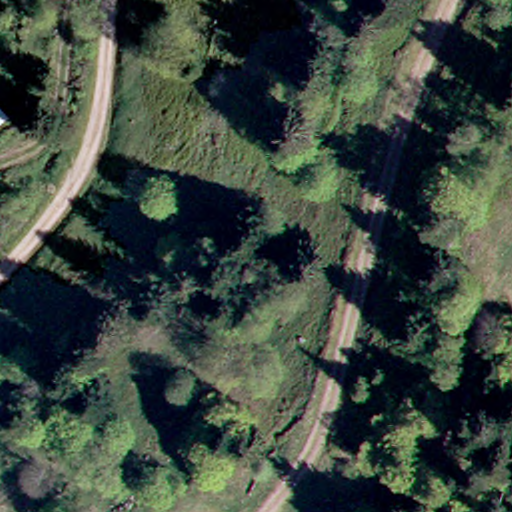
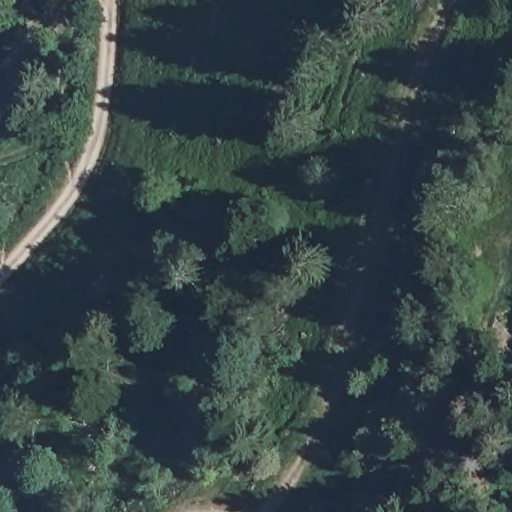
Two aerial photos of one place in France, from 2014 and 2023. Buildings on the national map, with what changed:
unchanged [(0,122),(0,105),(8,115),(0,122)]

